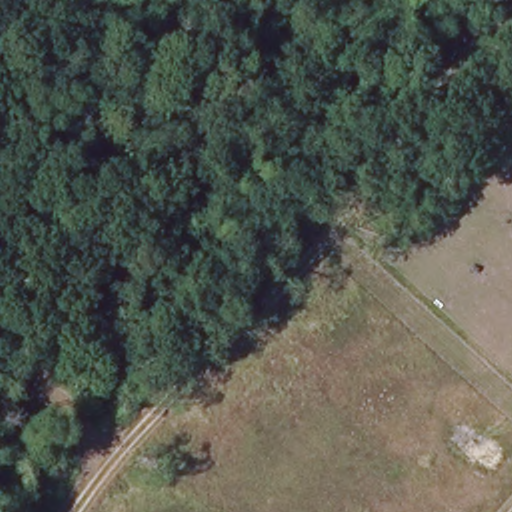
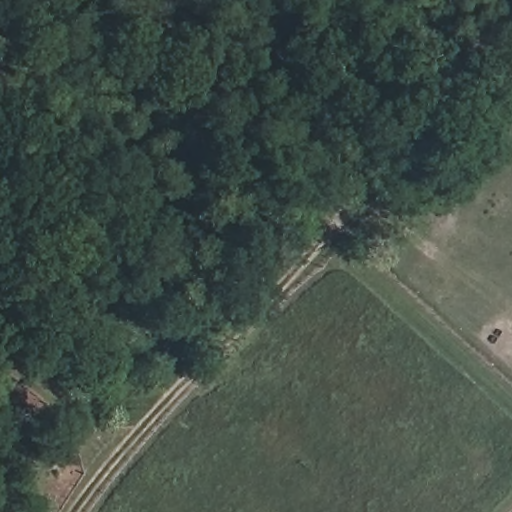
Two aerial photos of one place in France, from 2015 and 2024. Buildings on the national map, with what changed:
[]

